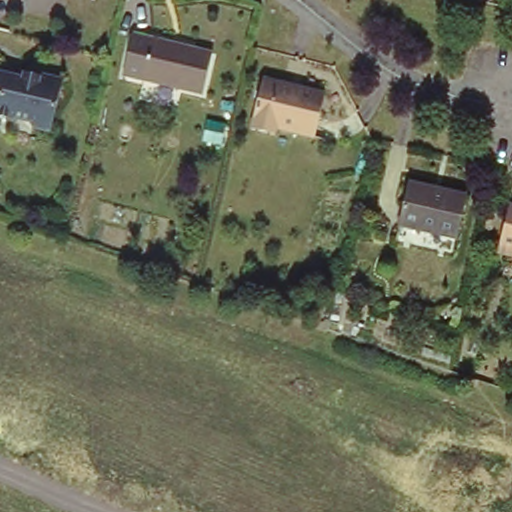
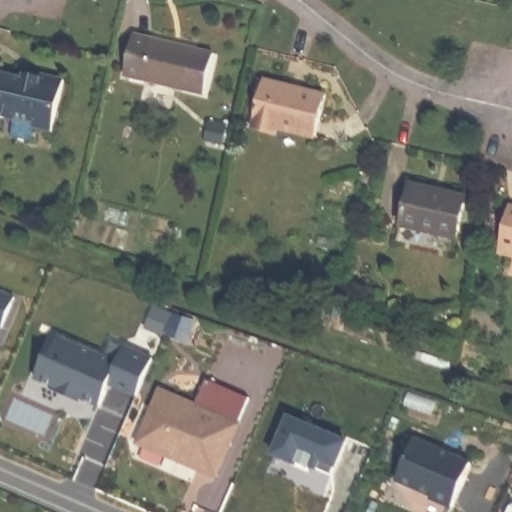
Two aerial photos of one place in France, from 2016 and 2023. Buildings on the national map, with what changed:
unchanged [(211,47),(205,88),(120,74),(129,32),(211,47)]
unchanged [(39,76),(60,81),(48,134),(30,129),(25,123),(10,119),(9,122),(0,120),(0,73),(37,82),(39,76)]
unchanged [(330,93),(319,135),(292,129),(290,137),(250,126),(262,77),(330,93)]
unchanged [(459,197),(448,237),(396,224),(407,185),(459,197)]
unchanged [(501,250),(512,205),(512,254),(501,250)]
new [(1,330),(0,329),(0,294),(14,300),(1,330)]
new [(154,306),(196,321),(187,345),(145,330),(154,306)]
new [(50,359),(59,339),(105,360),(112,343),(153,362),(137,400),(106,386),(102,392),(106,393),(100,409),(80,400),(78,404),(57,395),(59,391),(49,386),(35,380),(45,359),(46,357),(50,359)]
new [(161,391),(195,406),(207,380),(250,398),(216,477),(139,442),(161,391)]
new [(106,386),(109,387),(106,393),(102,392),(106,386)]
new [(287,416),(350,443),(338,476),(319,467),(322,459),(303,452),(296,467),(270,456),(287,416)]
new [(471,469),(452,512),(449,512),(430,503),(431,501),(396,486),(414,444),(471,469)]

